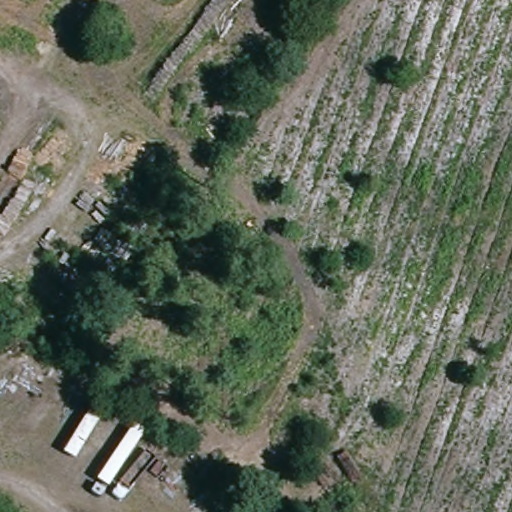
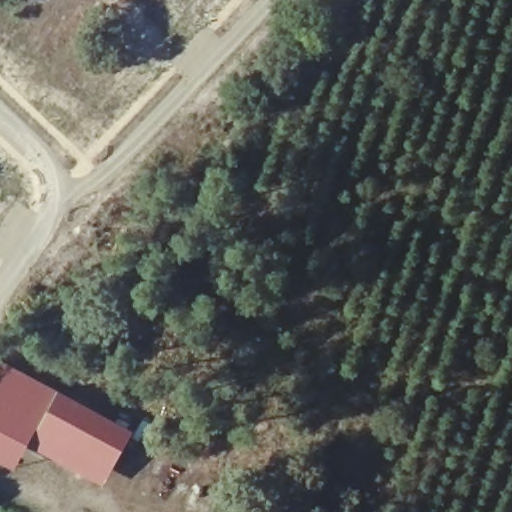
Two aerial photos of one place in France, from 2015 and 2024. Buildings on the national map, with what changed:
new [(134,431),(101,486),(27,444),(13,472),(0,465),(0,367),(3,361),(134,431)]

